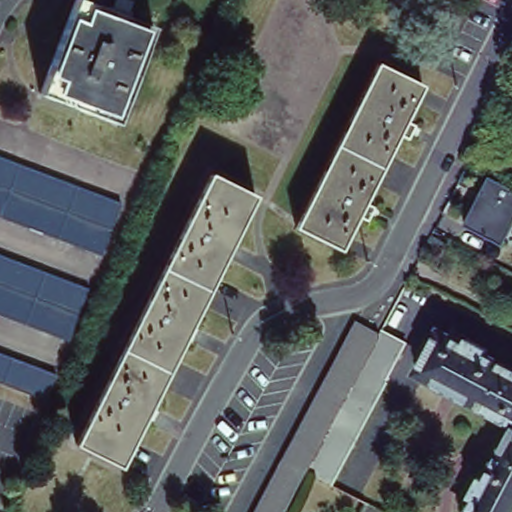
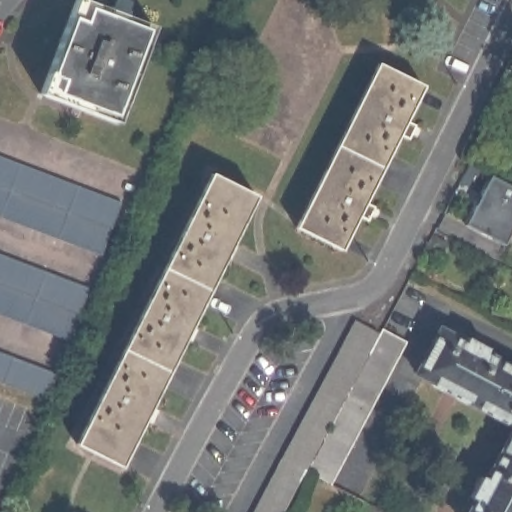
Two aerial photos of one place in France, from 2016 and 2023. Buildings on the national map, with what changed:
unchanged [(152,25),(116,122),(39,94),(74,0),(83,0),(152,25)]
unchanged [(365,202),(375,206),(367,219),(359,215),(341,250),(295,229),(377,62),(422,86),(405,120),(415,125),(408,139),(398,134),(365,202)]
unchanged [(512,104),(491,94),(501,75),(512,81),(512,104)]
unchanged [(120,202),(100,254),(0,216),(0,156),(120,202)]
unchanged [(215,168),(260,192),(126,461),(80,439),(215,168)]
unchanged [(512,188),(512,231),(505,246),(462,226),(488,175),(512,188)]
unchanged [(89,287),(69,339),(0,313),(0,254),(89,287)]
unchanged [(330,366),(336,354),(343,342),(350,330),(355,320),(380,332),(374,343),(367,356),(361,368),(355,379),(350,390),(285,512),(253,512),(325,376),(330,366)]
unchanged [(512,424),(415,374),(440,330),(512,368),(512,424)]
unchanged [(406,346),(330,489),(306,476),(381,333),(406,346)]
unchanged [(0,383),(0,352),(57,372),(47,400),(0,383)]
unchanged [(512,512),(470,512),(512,430),(512,512)]
unchanged [(373,512),(360,512),(363,506),(373,512)]

